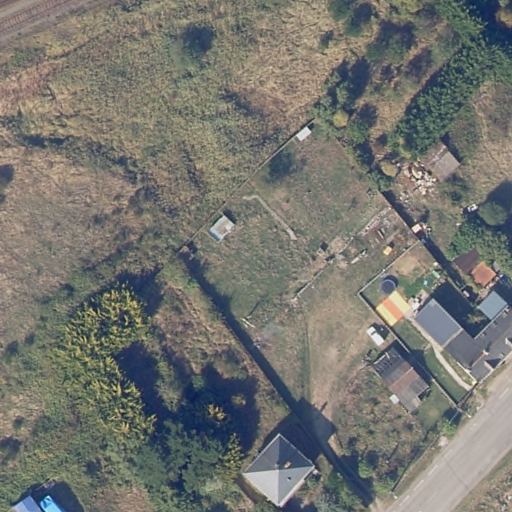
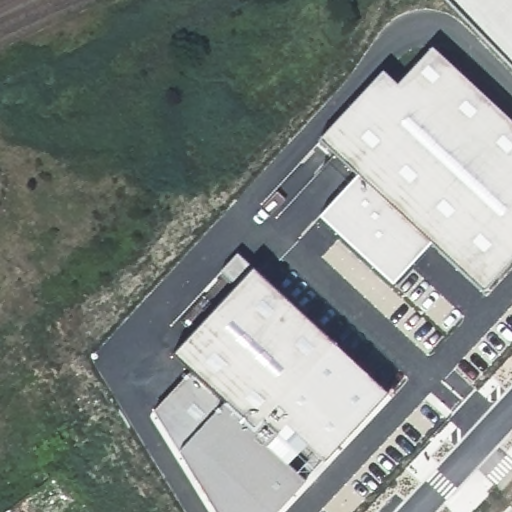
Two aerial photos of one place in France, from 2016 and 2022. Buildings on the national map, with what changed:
new [(447,0),(512,0),(512,66),(447,0)]
new [(357,174),(320,139),(383,69),(397,83),(432,46),(512,122),(512,261),(484,291),(431,243),(393,284),(320,218),(357,174)]
demolished [(471,192),(465,198),(458,192),(464,186),(471,192)]
demolished [(472,236),(500,264),(477,285),(450,256),(472,236)]
new [(155,411),(193,373),(173,354),(238,285),(222,270),(237,253),(252,267),(388,392),(277,512),(216,512),(179,452),(155,411)]
demolished [(435,298),(470,333),(475,339),(500,363),(482,382),(457,359),(448,347),(446,348),(415,318),(435,298)]
demolished [(493,321),(487,315),(496,306),(502,311),(508,303),(512,306),(512,350),(500,363),(475,339),(493,321)]
demolished [(315,465),(281,502),(249,471),(281,435),(315,465)]

